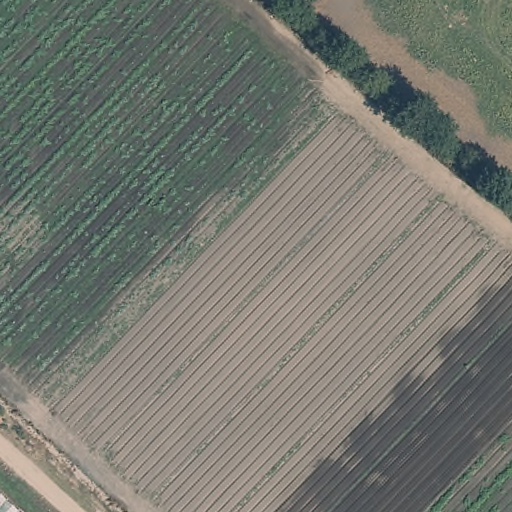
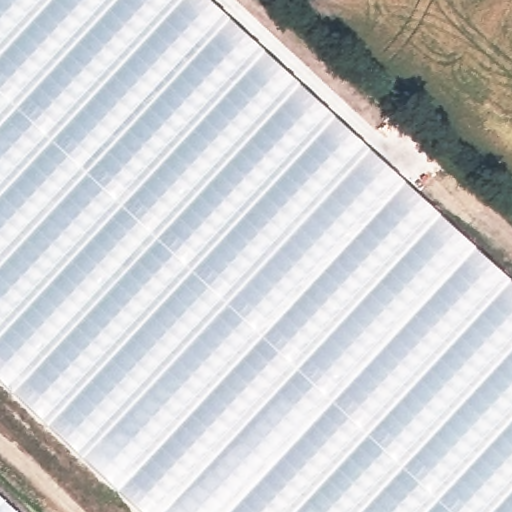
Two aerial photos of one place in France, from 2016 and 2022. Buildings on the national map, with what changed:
new [(512,285),(512,512),(141,512),(0,381),(0,0),(208,0),(512,285)]
unchanged [(0,512),(0,490),(23,512),(0,512)]

